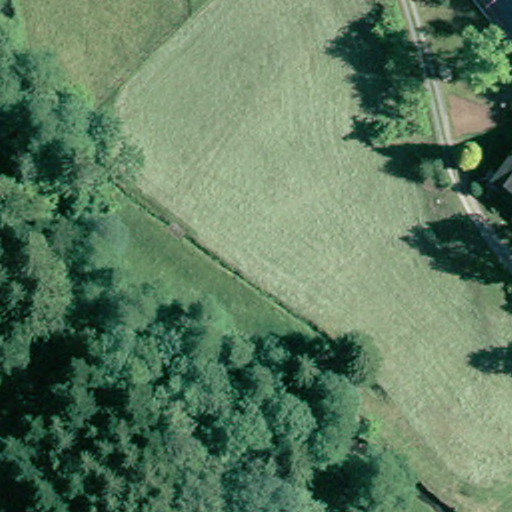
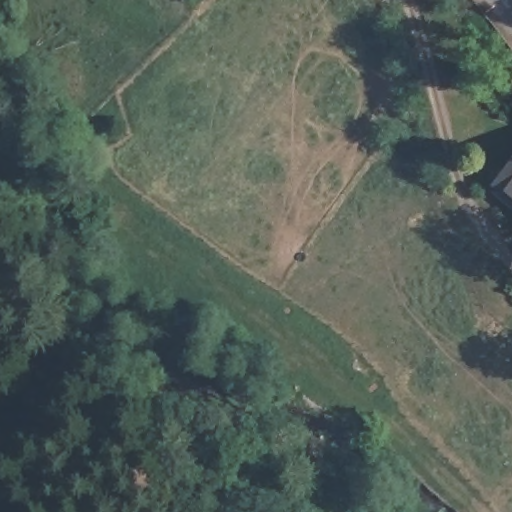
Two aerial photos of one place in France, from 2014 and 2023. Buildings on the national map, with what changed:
unchanged [(512,169),(512,193),(500,183),(512,169)]

